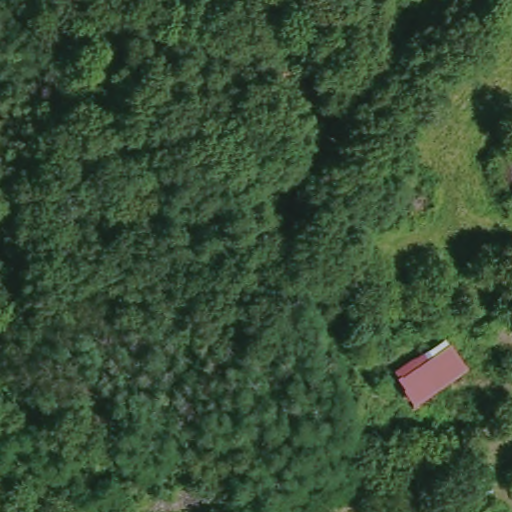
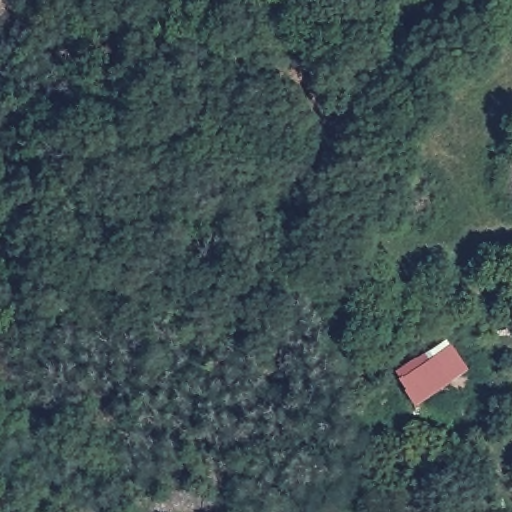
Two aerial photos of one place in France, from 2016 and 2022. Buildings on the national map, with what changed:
unchanged [(401,382),(408,379),(401,372),(453,338),(473,372),(417,406),(401,382)]

